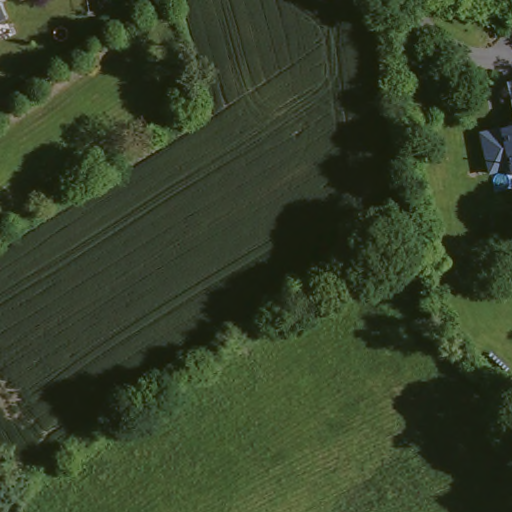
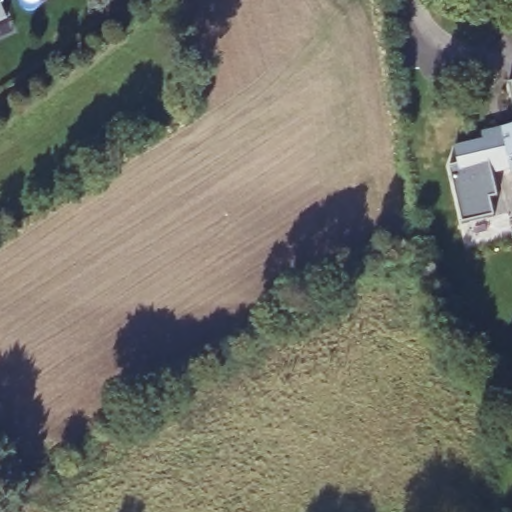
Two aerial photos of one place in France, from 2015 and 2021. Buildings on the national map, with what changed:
unchanged [(7,26),(0,29),(0,12),(7,26)]
new [(512,82),(512,104),(507,83),(512,82)]
demolished [(512,181),(507,183),(505,174),(484,178),(475,138),(498,133),(506,139),(511,134),(510,124),(502,87),(512,84),(512,181)]
new [(458,165),(454,146),(483,140),(481,133),(500,129),(512,126),(512,176),(511,170),(492,175),(497,197),(490,198),(494,217),(462,224),(448,166),(458,165)]

